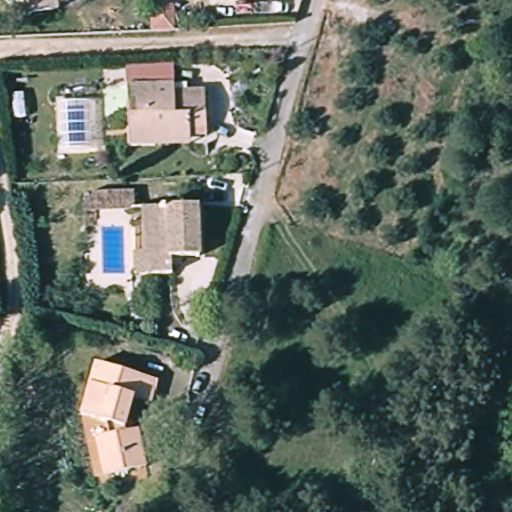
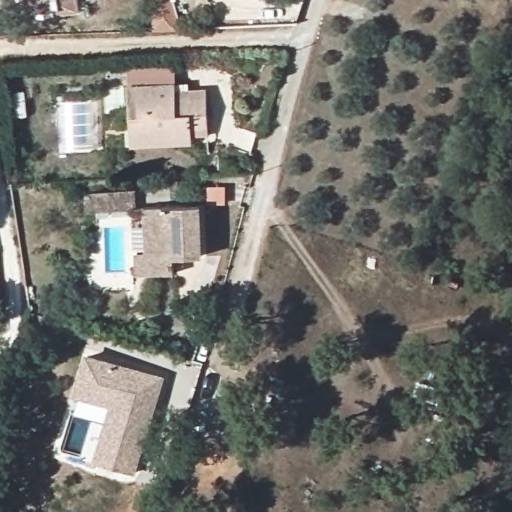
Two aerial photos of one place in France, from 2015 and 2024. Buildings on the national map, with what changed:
unchanged [(66,17),(39,20),(37,0),(64,0),(66,17)]
unchanged [(180,28),(153,29),(153,8),(174,8),(180,28)]
unchanged [(186,93),(202,93),(205,130),(189,131),(189,147),(129,150),(126,89),(185,86),(186,93)]
unchanged [(199,259),(169,261),(170,277),(134,278),(132,256),(144,255),(141,211),(197,208),(199,259)]
unchanged [(155,384),(149,404),(131,399),(122,435),(136,432),(144,470),(102,478),(94,441),(109,438),(106,426),(79,419),(94,366),(155,384)]

